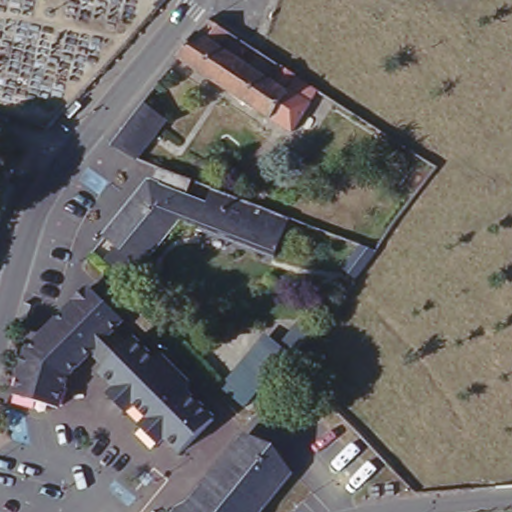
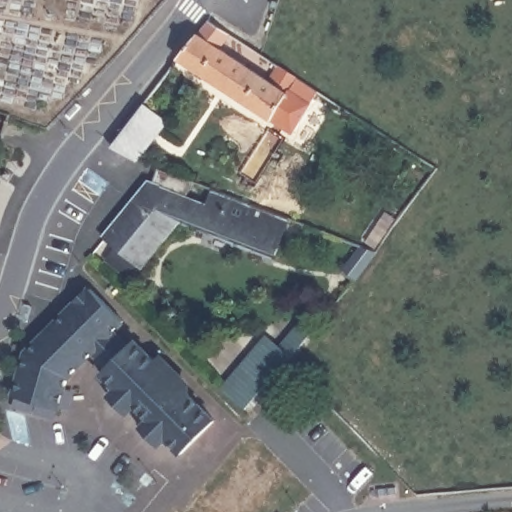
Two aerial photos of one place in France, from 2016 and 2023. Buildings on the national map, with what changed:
unchanged [(176,57),(206,18),(229,33),(219,48),(267,78),(277,65),(317,90),(291,132),(176,57)]
unchanged [(166,124),(135,164),(108,150),(142,106),(166,124)]
unchanged [(176,182),(169,205),(180,209),(175,225),(136,273),(97,243),(137,193),(143,195),(151,172),(176,182)]
unchanged [(270,261),(175,225),(180,209),(169,205),(176,182),(186,186),(182,201),(201,207),(205,193),(283,224),(270,261)]
unchanged [(375,252),(353,279),(341,269),(358,247),(375,252)]
unchanged [(29,346),(93,282),(126,315),(70,370),(60,402),(16,389),(29,346)]
unchanged [(262,335),(277,346),(297,326),(307,332),(241,409),(219,385),(262,335)]
unchanged [(168,362),(173,357),(190,374),(185,379),(221,415),(189,447),(172,432),(165,440),(147,423),(155,415),(140,399),(132,407),(116,391),(124,383),(108,367),(142,335),(168,362)]
demolished [(181,501),(249,431),(292,471),(254,512),(161,512),(176,497),(181,501)]

